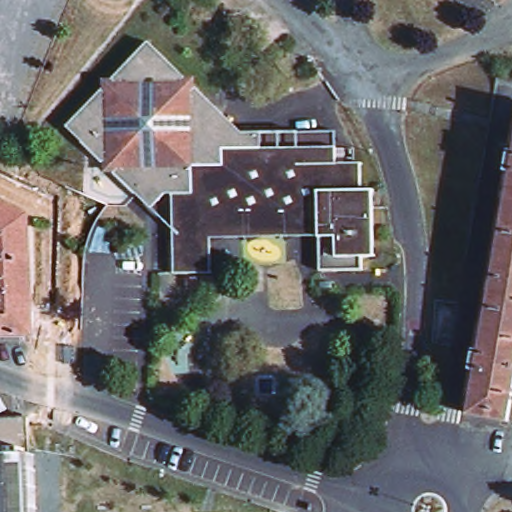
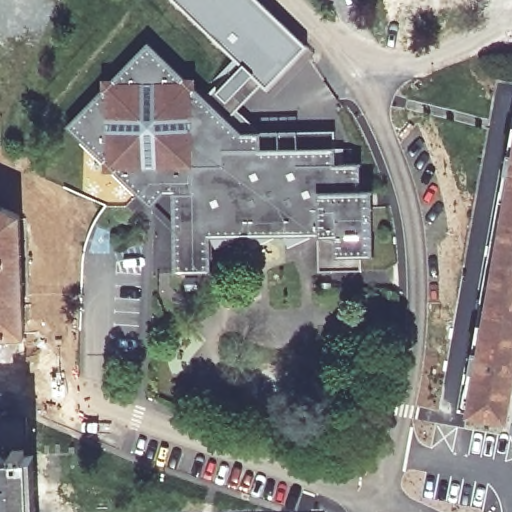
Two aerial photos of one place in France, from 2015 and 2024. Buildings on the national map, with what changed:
new [(309,48),(265,90),(260,85),(237,62),(171,0),(260,0),(309,48)]
unchanged [(492,0),(496,0),(495,2),(492,0)]
unchanged [(168,200),(162,200),(154,207),(154,198),(140,198),(139,206),(109,176),(99,176),(98,166),(65,134),(149,47),(243,137),(262,136),(262,154),(278,154),(279,135),(298,135),(298,154),(334,153),(335,169),(359,169),(359,195),(371,195),(372,261),(360,262),(360,275),(318,275),(317,241),(279,241),(243,242),(207,242),(206,278),(177,278),(169,278),(168,200)]
new [(237,62),(260,85),(232,113),(212,92),(237,62)]
unchanged [(508,425),(469,417),(476,373),(469,371),(473,351),(479,353),(511,177),(504,176),(509,156),(512,157),(512,399),(508,425)]
unchanged [(21,336),(0,339),(0,211),(16,218),(21,336)]
unchanged [(33,460),(0,459),(0,425),(31,423),(33,460)]
unchanged [(38,460),(40,512),(0,512),(0,459),(33,460),(38,460)]

